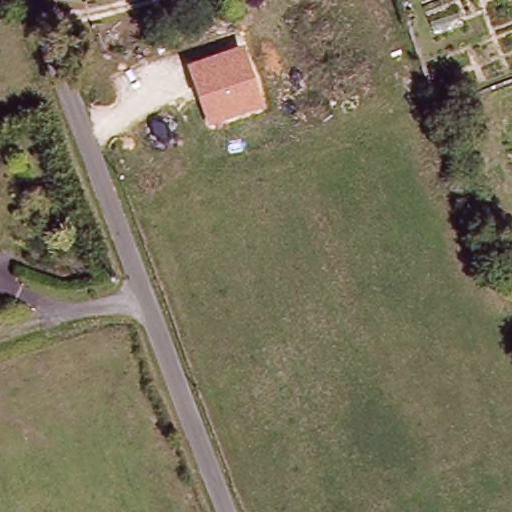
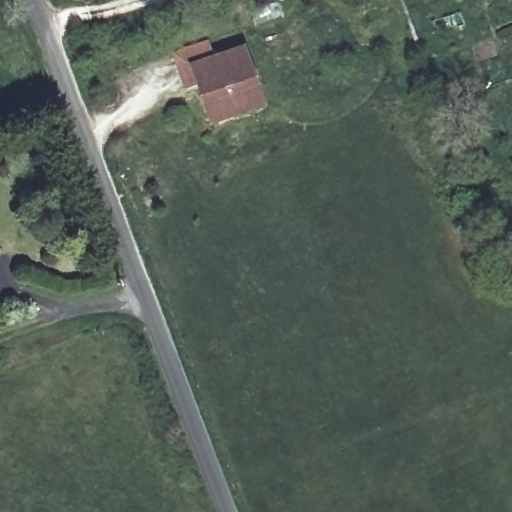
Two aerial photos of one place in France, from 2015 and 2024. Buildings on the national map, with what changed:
unchanged [(245,46),(264,107),(208,126),(188,66),(245,46)]

